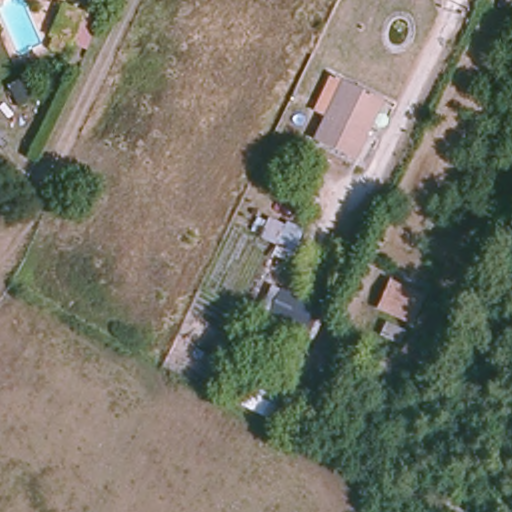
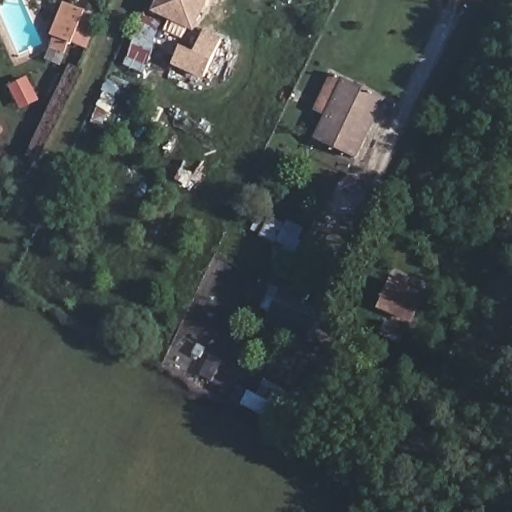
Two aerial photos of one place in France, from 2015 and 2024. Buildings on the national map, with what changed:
new [(156,0),(207,0),(194,30),(151,11),(156,0)]
unchanged [(87,12),(74,39),(56,30),(70,4),(87,12)]
new [(201,79),(172,66),(180,47),(194,54),(204,29),(222,36),(201,79)]
unchanged [(20,104),(9,84),(27,75),(37,95),(20,104)]
unchanged [(385,95),(356,156),(327,143),(317,138),(347,76),(356,81),(385,95)]
unchanged [(292,259),(275,252),(288,221),(306,229),(292,259)]
unchanged [(382,309),(394,282),(428,298),(416,324),(382,309)]
unchanged [(312,344),(268,323),(282,288),(328,309),(312,344)]

